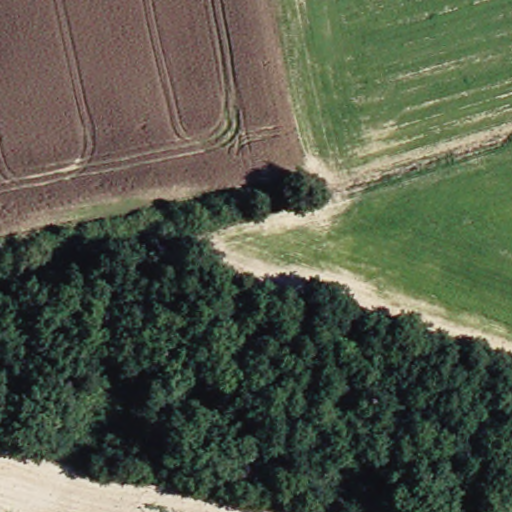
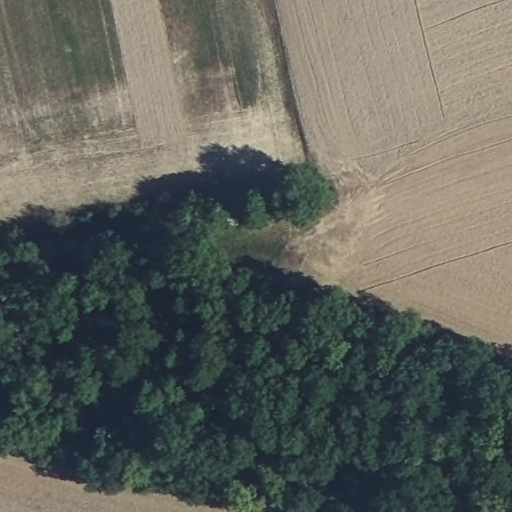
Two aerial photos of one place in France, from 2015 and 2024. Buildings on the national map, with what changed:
[]

